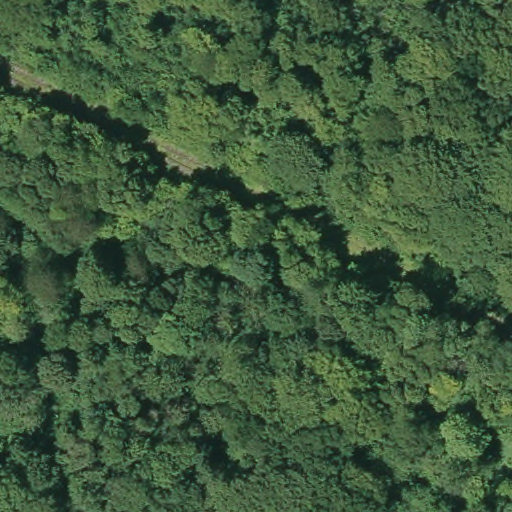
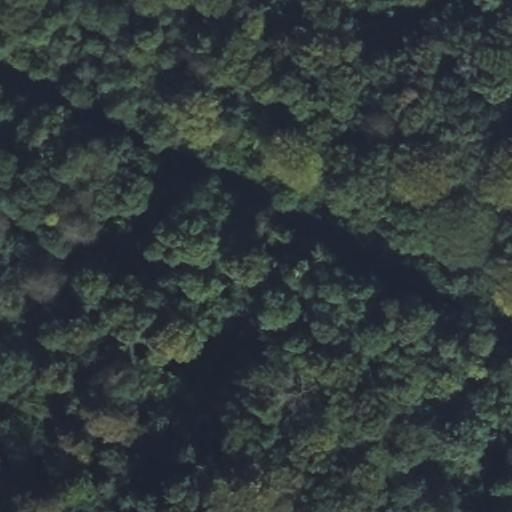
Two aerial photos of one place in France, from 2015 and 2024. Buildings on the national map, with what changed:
[]

